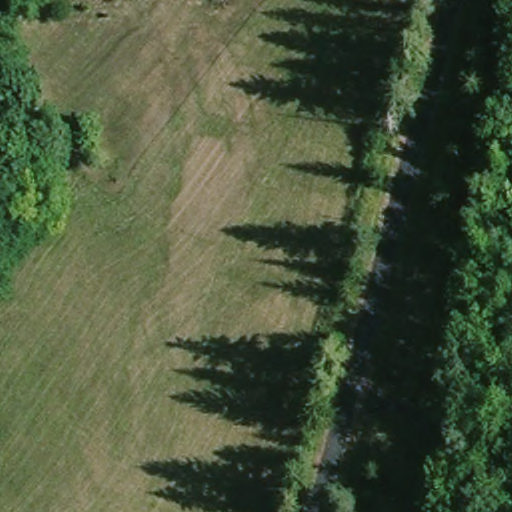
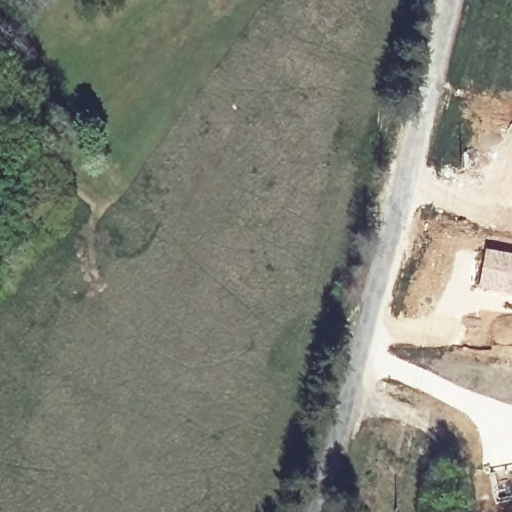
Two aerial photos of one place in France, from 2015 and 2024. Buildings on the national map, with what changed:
new [(512,202),(512,207),(510,207),(512,202)]
new [(484,249),(512,254),(512,295),(477,289),(484,249)]

